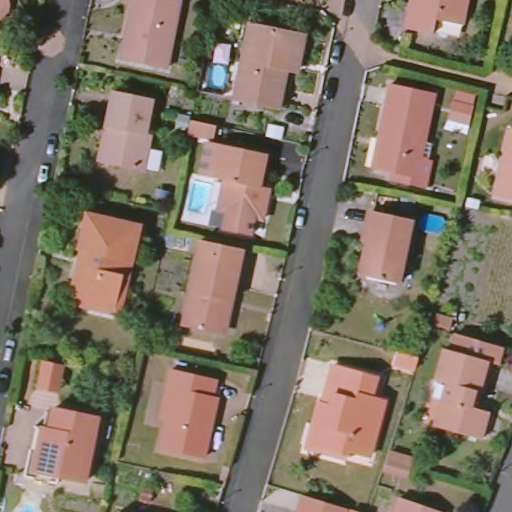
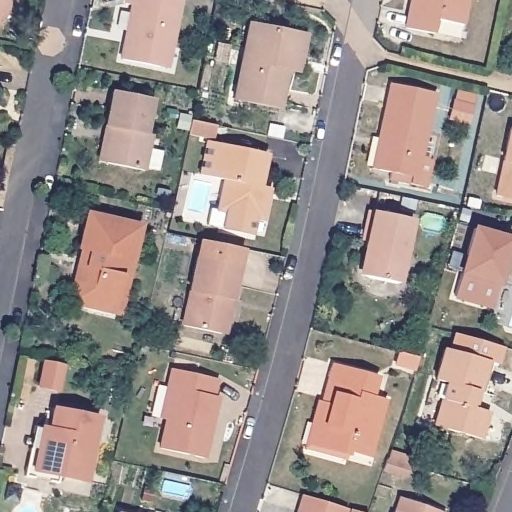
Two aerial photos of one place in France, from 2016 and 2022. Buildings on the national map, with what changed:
unchanged [(6,5),(5,7),(2,12),(0,14),(0,0),(7,0),(6,5)]
unchanged [(122,64),(125,46),(131,47),(132,40),(127,39),(132,12),(125,10),(128,0),(161,0),(181,4),(171,52),(164,50),(159,72),(122,64)]
unchanged [(460,28),(433,22),(430,37),(404,31),(411,1),(411,0),(467,0),(460,28)]
unchanged [(251,23),(296,32),(306,34),(299,69),(289,67),(280,107),(235,98),(251,23)]
unchanged [(425,157),(428,158),(422,185),(384,176),(385,168),(377,166),(370,165),(377,136),(390,81),(432,90),(422,139),(429,141),(425,157)]
unchanged [(106,121),(113,90),(150,98),(144,128),(150,129),(142,165),(107,157),(99,156),(106,121)]
unchanged [(215,125),(212,137),(189,132),(191,120),(215,125)]
unchanged [(507,193),(497,190),(512,122),(512,123),(512,194),(507,193)]
unchanged [(267,154),(262,185),(269,187),(267,196),(269,201),(265,219),(255,217),(252,237),(225,232),(229,212),(222,201),(226,179),(216,177),(222,144),(267,154)]
unchanged [(362,274),(367,246),(364,245),(371,209),(410,218),(396,282),(362,274)]
unchanged [(74,288),(78,265),(86,266),(89,252),(78,249),(86,215),(139,227),(127,278),(121,278),(112,314),(89,308),(70,303),(74,288)]
new [(507,300),(492,296),(488,310),(452,301),(471,220),(507,228),(512,215),(512,281),(507,300)]
unchanged [(184,331),(199,263),(202,247),(242,255),(238,271),(239,272),(232,307),(228,306),(220,339),(184,331)]
unchanged [(457,334),(508,350),(503,364),(489,362),(478,405),(491,408),(481,438),(429,422),(441,382),(431,373),(440,345),(452,348),(457,334)]
unchanged [(316,393),(320,394),(324,396),(327,385),(320,383),(326,357),(370,369),(365,389),(377,393),(362,448),(342,443),(341,447),(314,440),(304,437),(316,393)]
unchanged [(217,379),(213,396),(217,397),(204,457),(161,447),(167,419),(160,418),(167,386),(172,368),(217,379)]
unchanged [(28,475),(40,425),(47,426),(52,406),(59,407),(104,417),(90,481),(64,475),(62,482),(28,475)]
unchanged [(384,456),(409,464),(405,476),(380,468),(384,456)]
unchanged [(436,510),(442,512),(397,512),(402,498),(436,510)]
unchanged [(326,512),(298,512),(300,504),(326,512)]
unchanged [(120,512),(113,512),(114,510),(120,512)]

